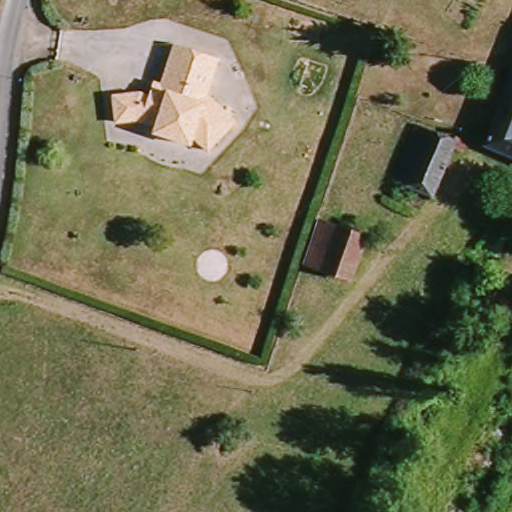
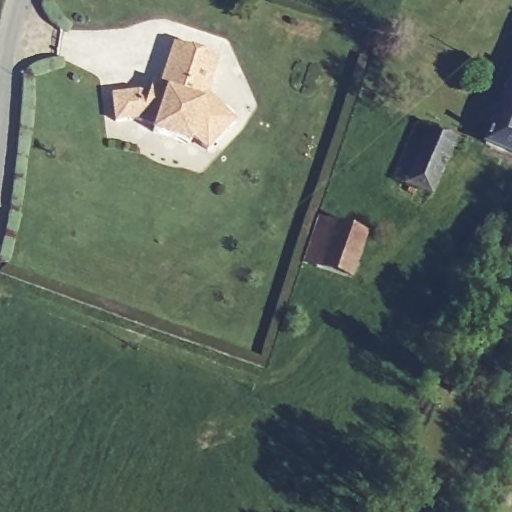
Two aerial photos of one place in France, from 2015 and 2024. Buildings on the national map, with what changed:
unchanged [(151,137),(154,131),(139,124),(115,126),(112,100),(136,97),(165,106),(168,94),(160,92),(175,48),(217,62),(204,97),(234,127),(205,154),(191,141),(183,151),(151,137)]
unchanged [(512,78),(507,76),(512,63),(512,78)]
unchanged [(507,76),(512,78),(512,138),(487,129),(507,76)]
unchanged [(487,129),(512,138),(512,159),(480,147),(487,129)]
unchanged [(430,201),(392,186),(415,131),(453,146),(455,142),(468,147),(461,160),(448,155),(430,201)]
unchanged [(315,222),(361,237),(347,279),(301,264),(315,222)]
unchanged [(453,255),(472,262),(467,275),(448,267),(453,255)]

